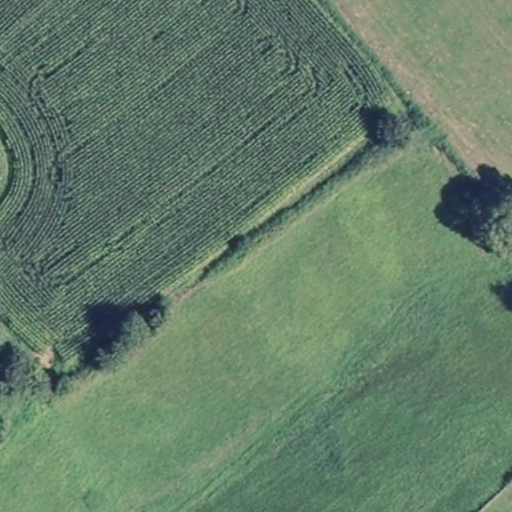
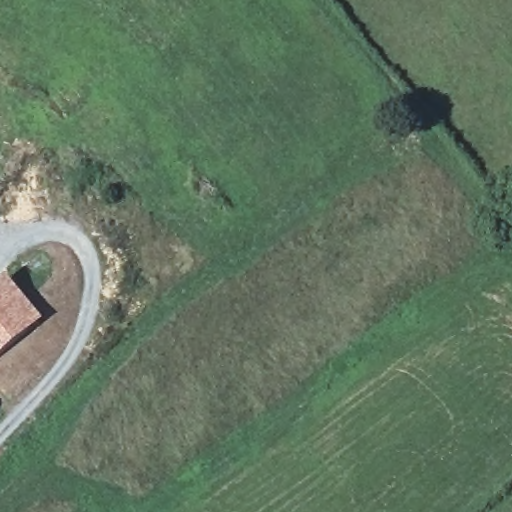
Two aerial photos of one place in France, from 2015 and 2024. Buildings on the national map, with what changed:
new [(5,276),(41,322),(0,356),(0,280),(5,276)]

